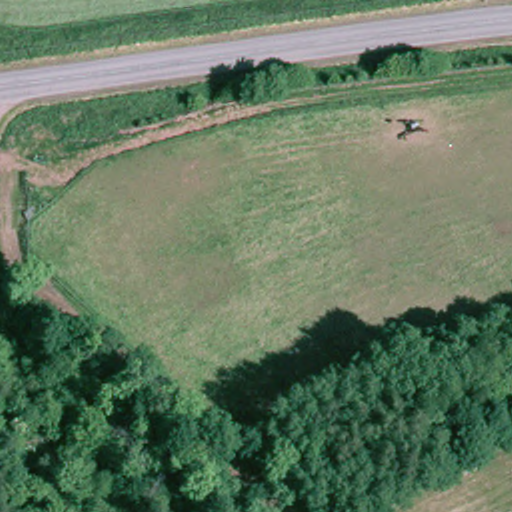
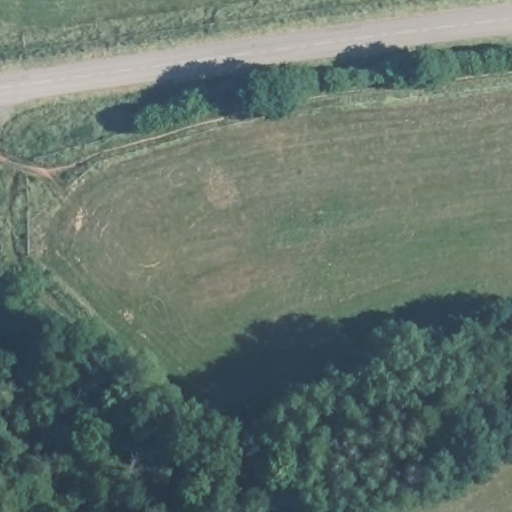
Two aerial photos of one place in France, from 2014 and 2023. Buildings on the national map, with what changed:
[]

